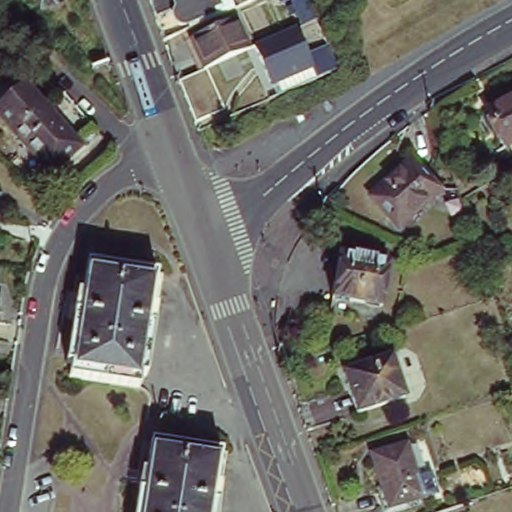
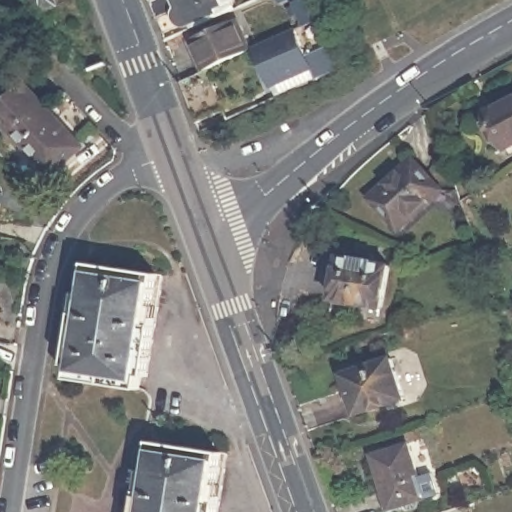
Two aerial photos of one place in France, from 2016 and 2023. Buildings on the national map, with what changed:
unchanged [(36,16),(29,0),(53,0),(56,7),(36,16)]
unchanged [(215,0),(222,15),(192,28),(190,23),(186,24),(183,25),(180,25),(178,24),(177,21),(175,18),(175,14),(176,11),(176,10),(156,19),(149,1),(150,0),(215,0)]
unchanged [(287,0),(278,4),(276,0),(287,0)]
unchanged [(294,4),(301,0),(309,0),(317,20),(302,26),(301,19),(294,4)]
unchanged [(190,39),(236,19),(249,50),(207,69),(203,71),(190,39)]
unchanged [(277,97),(272,86),(255,48),(295,30),(307,55),(328,45),(339,69),(282,96),(277,97)]
unchanged [(225,110),(195,123),(180,81),(203,71),(207,69),(225,110)]
unchanged [(51,171),(0,115),(0,106),(27,81),(81,141),(51,171)]
unchanged [(512,98),(512,143),(505,146),(487,111),(512,98)]
unchanged [(416,159),(445,190),(404,228),(375,196),(416,159)]
unchanged [(383,316),(336,308),(346,251),(359,254),(360,251),(382,255),(381,258),(393,260),(383,316)]
unchanged [(66,365),(75,305),(81,306),(88,263),(162,275),(146,377),(141,376),(140,389),(70,379),(71,366),(66,365)]
unchanged [(391,358),(404,398),(358,413),(344,374),(391,358)]
unchanged [(139,483),(145,484),(151,442),(227,453),(218,512),(134,512),(139,483)]
unchanged [(412,449),(423,481),(435,478),(442,500),(403,512),(393,512),(376,460),(412,449)]

